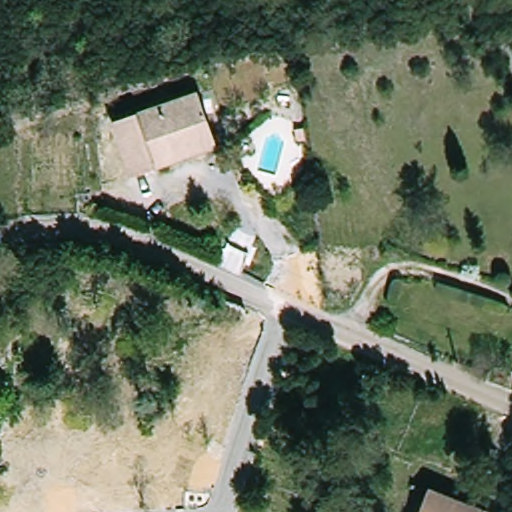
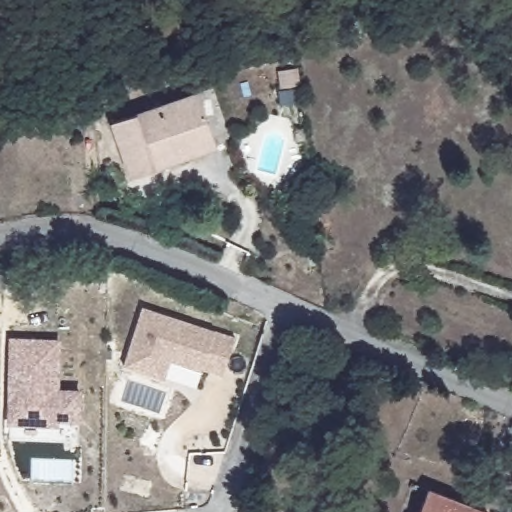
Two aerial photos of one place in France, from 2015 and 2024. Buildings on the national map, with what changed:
unchanged [(176,163),(153,171),(131,178),(113,125),(157,109),(198,95),(212,135),(216,149),(176,163)]
unchanged [(303,133),(304,144),(296,145),(294,134),(303,133)]
new [(167,362),(161,381),(154,379),(121,369),(140,308),(233,337),(220,376),(201,370),(199,373),(167,362)]
new [(58,341),(57,390),(79,391),(78,419),(55,418),(55,423),(9,422),(10,339),(58,341)]
demolished [(110,488),(61,480),(62,472),(27,467),(28,459),(7,455),(10,433),(116,450),(110,488)]
demolished [(14,490),(22,492),(19,511),(8,509),(8,512),(0,512),(0,498),(4,475),(16,477),(14,490)]
unchanged [(485,511),(485,512),(419,512),(428,489),(485,511)]

